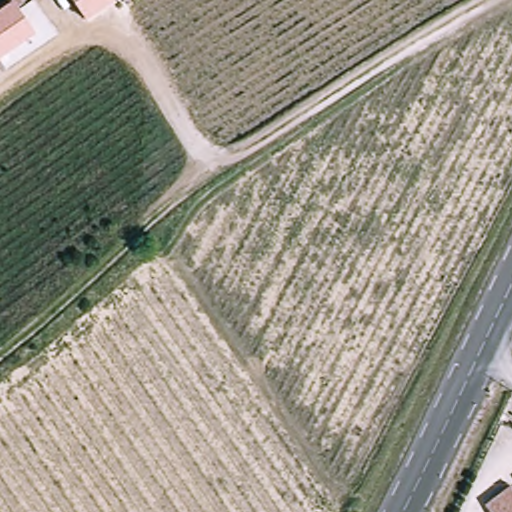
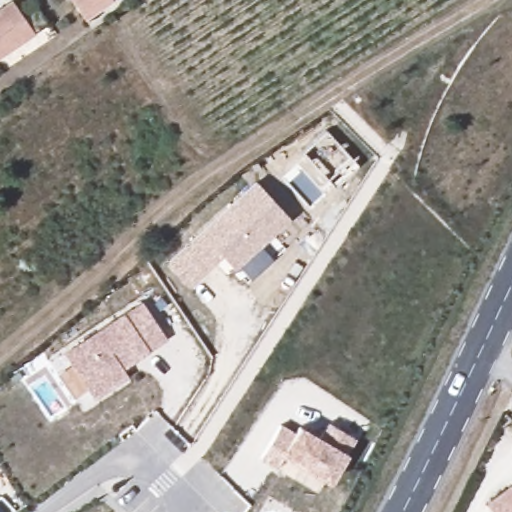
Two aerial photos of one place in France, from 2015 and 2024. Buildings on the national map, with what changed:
unchanged [(88,23),(73,0),(113,0),(116,4),(88,23)]
unchanged [(0,57),(0,9),(13,2),(34,32),(0,57)]
new [(256,179),(289,215),(233,265),(221,252),(187,283),(167,261),(256,179)]
new [(141,301),(164,337),(113,372),(118,380),(93,397),(63,354),(141,301)]
new [(281,426),(296,435),(300,428),(320,440),(329,423),(355,438),(330,482),(285,456),(278,469),(261,460),(281,426)]
unchanged [(511,486),(512,488),(512,512),(491,512),(486,505),(511,486)]

